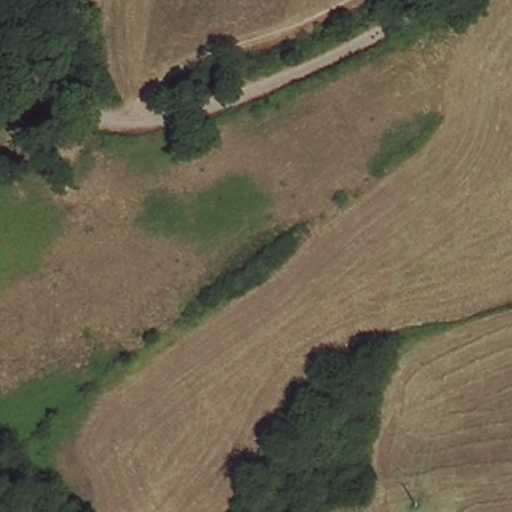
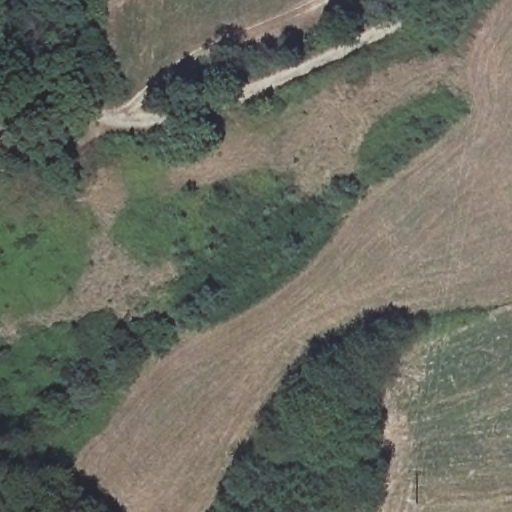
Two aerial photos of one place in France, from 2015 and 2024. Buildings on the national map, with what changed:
[]

